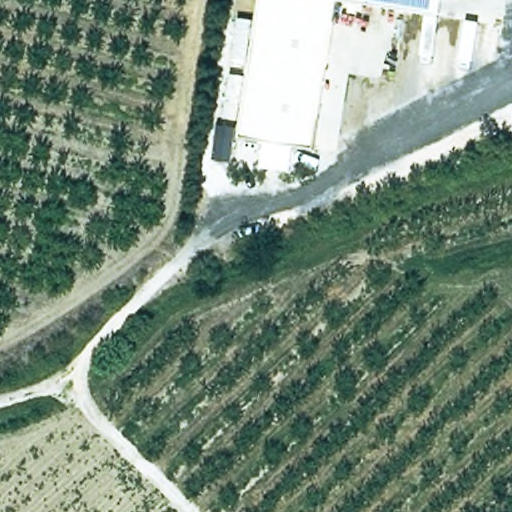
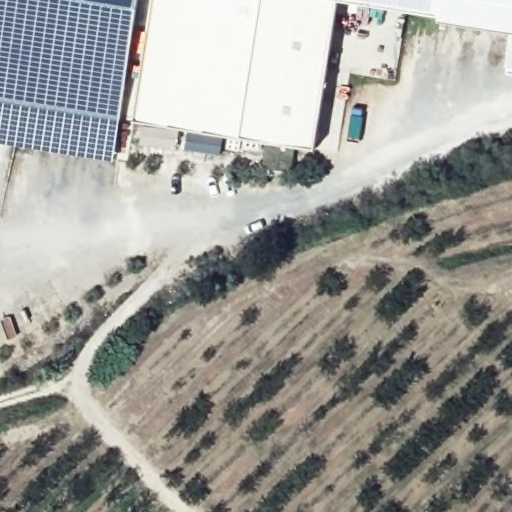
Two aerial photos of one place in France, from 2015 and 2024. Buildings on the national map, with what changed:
new [(137,0),(118,120),(0,102),(0,0),(137,0)]
new [(151,0),(258,0),(251,49),(235,145),(132,120),(151,0)]
unchanged [(312,156),(235,145),(251,49),(258,0),(411,0),(408,18),(335,6),(312,156)]
unchanged [(440,0),(437,21),(408,18),(411,0),(440,0)]
new [(441,0),(512,0),(512,30),(437,20),(441,0)]

